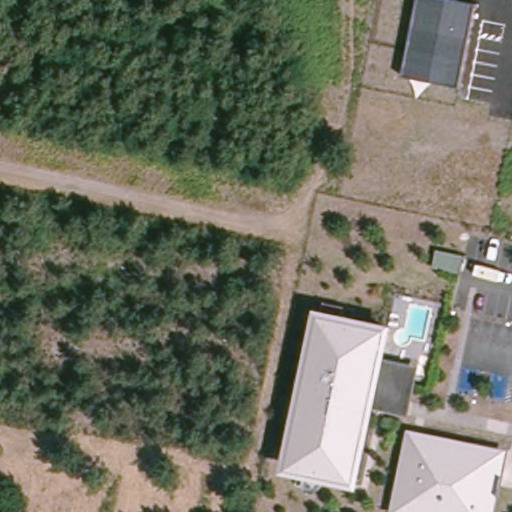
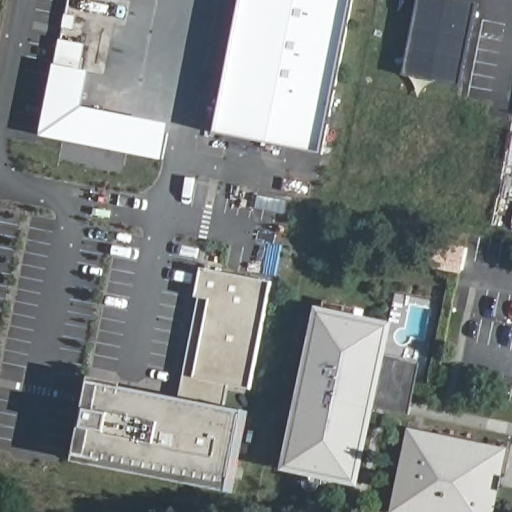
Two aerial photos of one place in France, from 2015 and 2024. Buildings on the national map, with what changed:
new [(217,134),(242,0),(352,0),(321,155),(217,134)]
unchanged [(460,86),(403,76),(419,0),(459,0),(476,4),(460,86)]
new [(82,59),(74,103),(169,122),(162,156),(41,132),(57,54),(82,59)]
new [(439,248),(465,253),(461,275),(435,270),(439,248)]
new [(201,298),(197,297),(204,269),(272,282),(251,390),(230,386),(231,409),(180,400),(201,298)]
unchanged [(410,417),(378,412),(361,487),(283,476),(317,308),(395,325),(388,356),(421,363),(410,417)]
new [(76,463),(85,430),(89,411),(90,378),(122,385),(121,390),(180,400),(231,409),(247,412),(231,493),(76,463)]
unchanged [(391,512),(406,429),(508,450),(497,512),(391,512)]

